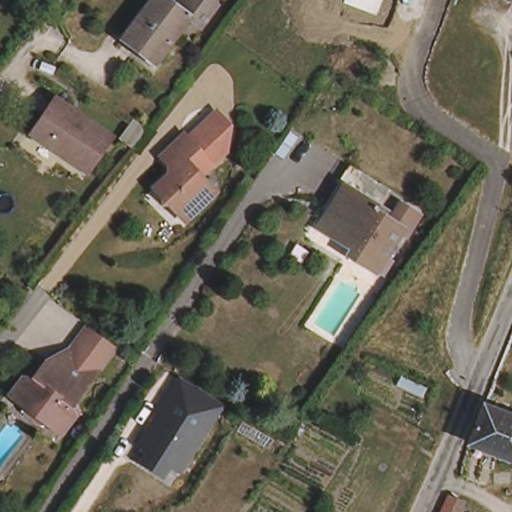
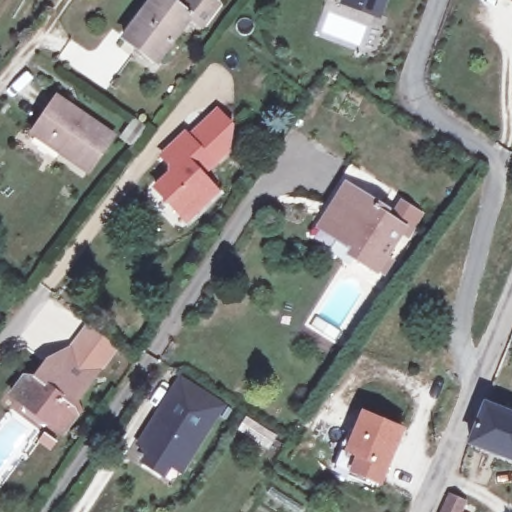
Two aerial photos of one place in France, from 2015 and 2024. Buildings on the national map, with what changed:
unchanged [(152,64),(121,40),(153,0),(211,0),(219,6),(202,27),(190,18),(152,64)]
new [(384,0),(377,18),(344,6),(346,0),(384,0)]
unchanged [(27,133),(51,97),(65,106),(63,110),(71,116),(73,112),(106,136),(82,171),(27,133)]
unchanged [(189,139),(215,111),(230,124),(230,149),(216,164),(189,139)]
unchanged [(123,143),(115,138),(127,122),(135,127),(123,143)]
unchanged [(181,213),(158,192),(178,171),(164,157),(185,136),(189,139),(216,164),(205,176),(221,191),(206,206),(190,221),(181,213)]
unchanged [(365,209),(380,218),(390,204),(408,216),(395,235),(390,231),(365,270),(345,257),(353,244),(345,240),(342,246),(326,236),(309,225),(320,208),(325,211),(340,187),(369,205),(365,209)]
unchanged [(90,326),(117,347),(93,379),(65,359),(90,326)]
unchanged [(27,414),(23,405),(12,397),(25,378),(35,380),(47,363),(57,371),(65,359),(93,379),(73,407),(77,416),(64,435),(55,428),(42,426),(27,414)]
unchanged [(227,403),(183,475),(174,468),(167,480),(139,464),(145,454),(135,447),(181,373),(227,403)]
unchanged [(468,440),(484,403),(512,415),(512,460),(468,440)]
new [(347,471),(355,455),(344,451),(362,408),(405,428),(382,485),(347,471)]

